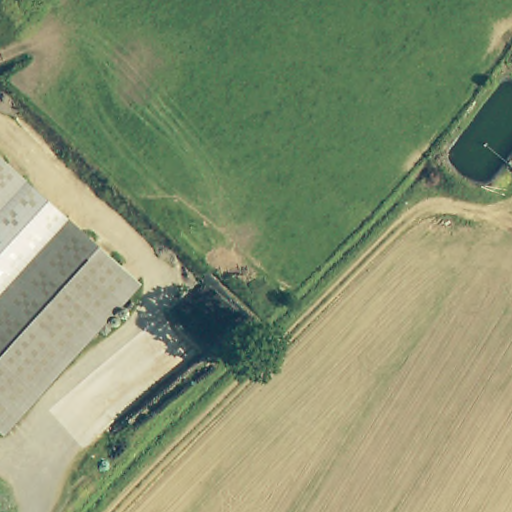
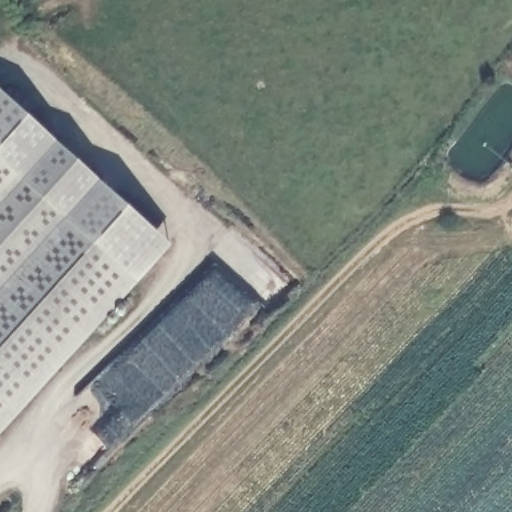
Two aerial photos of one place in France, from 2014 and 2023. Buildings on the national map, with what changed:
new [(99,179),(170,244),(136,284),(65,219),(20,179),(0,160),(0,91),(55,141),(99,179)]
unchanged [(0,201),(0,160),(20,179),(0,201)]
unchanged [(0,201),(20,179),(65,219),(0,291),(0,201)]
unchanged [(136,284),(0,433),(0,291),(65,219),(136,284)]

